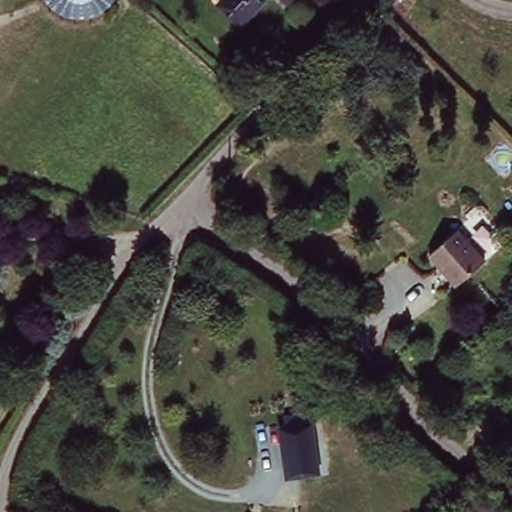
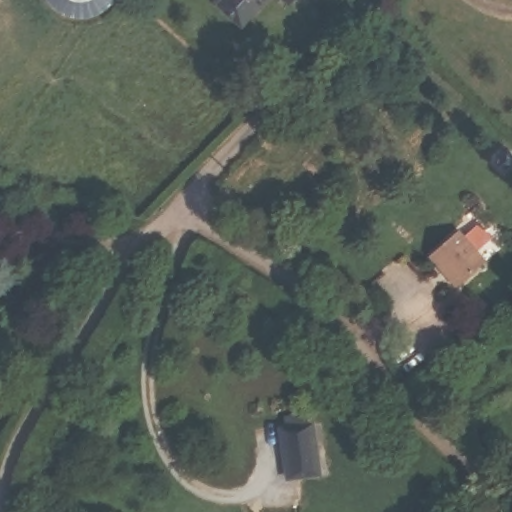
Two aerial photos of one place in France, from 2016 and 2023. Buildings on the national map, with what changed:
unchanged [(114,1),(108,8),(96,16),(83,19),(70,17),(57,11),(49,5),(46,0),(115,0),(114,1)]
unchanged [(235,22),(216,0),(255,0),(235,22)]
unchanged [(487,259),(460,286),(429,254),(458,227),(487,259)]
unchanged [(287,479),(280,426),(283,425),(281,414),(311,411),(314,423),(320,475),(287,479)]

